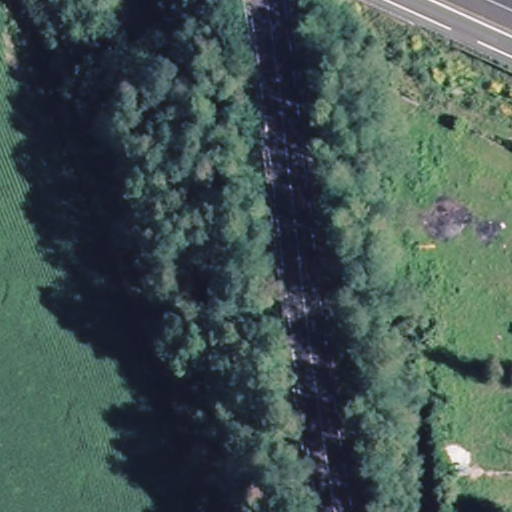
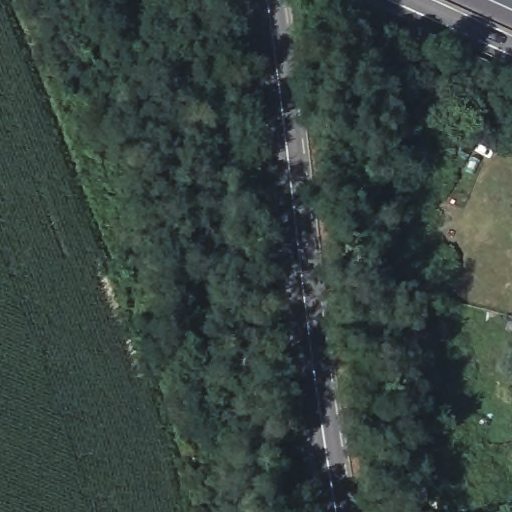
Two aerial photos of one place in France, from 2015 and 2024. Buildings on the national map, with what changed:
[]

